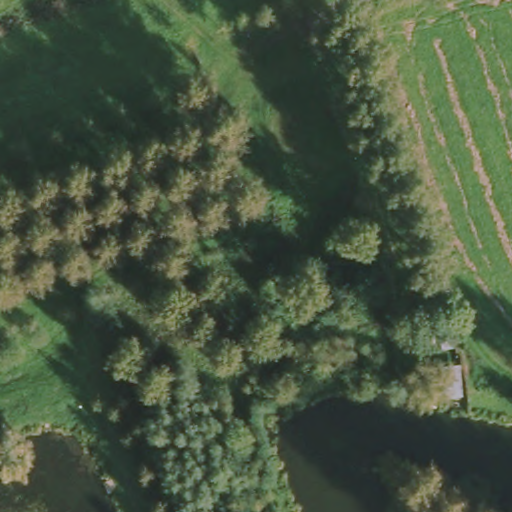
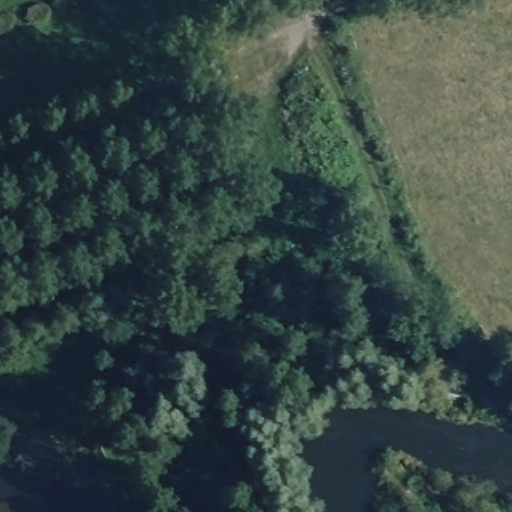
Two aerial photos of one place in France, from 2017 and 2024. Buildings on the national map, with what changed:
unchanged [(454,368),(458,402),(437,402),(436,367),(454,368)]

